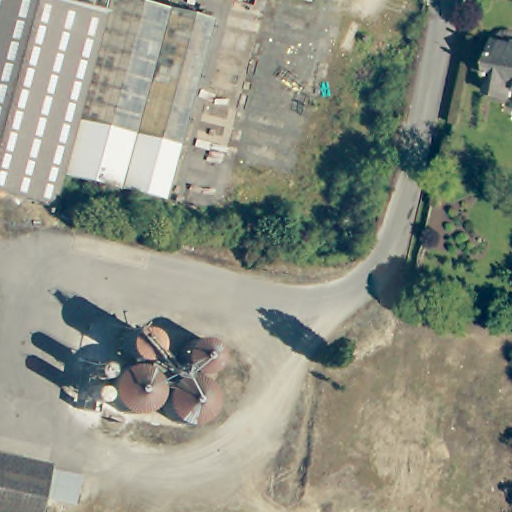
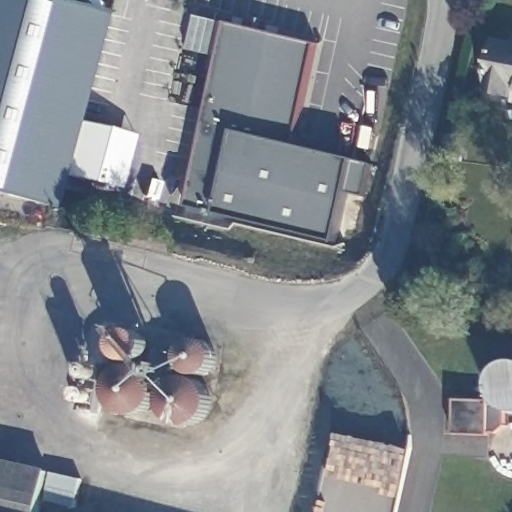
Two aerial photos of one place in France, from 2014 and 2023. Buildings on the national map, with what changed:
unchanged [(110,11),(71,174),(63,206),(0,191),(0,0),(63,0),(110,11)]
new [(225,21),(317,43),(293,145),(351,160),(369,163),(360,197),(344,193),(332,241),(211,213),(183,205),(225,21)]
unchanged [(512,95),(488,90),(498,39),(512,42),(512,95)]
demolished [(208,117),(226,44),(250,50),(232,123),(208,117)]
new [(124,187),(70,176),(71,174),(83,121),(137,135),(124,187)]
unchanged [(152,335),(152,341),(151,348),(147,353),(141,356),(134,357),(126,355),(121,351),(119,345),(118,338),(122,331),(127,327),(138,325),(148,328),(152,335)]
unchanged [(202,339),(207,340),(211,343),(214,347),(217,351),(217,356),(216,361),(214,366),(211,370),(207,373),(202,375),(197,375),(192,373),(187,370),(184,366),(182,361),(181,356),(182,351),(184,347),(188,343),(192,340),(197,339),(202,339)]
unchanged [(139,364),(144,365),(148,368),(152,371),(155,375),(158,380),(159,385),(160,390),(159,395),(158,400),(155,404),(152,408),(148,411),(143,413),(139,415),(133,415),(128,415),(124,413),(119,411),(115,407),(112,403),(110,399),(108,394),(108,389),(108,384),(110,379),(112,375),(115,371),(119,367),(124,365),(129,364),(134,363),(139,364)]
unchanged [(192,377),(197,378),(201,380),(205,383),(208,387),(211,392),(212,396),(213,401),(212,406),(210,411),(208,415),(205,420),(201,422),(196,425),(191,426),(186,426),(182,425),(177,423),(173,420),(169,417),(166,413),(164,408),(163,403),(163,398),(164,393),(166,389),(169,385),(173,381),(177,379),(182,377),(187,376),(192,377)]
unchanged [(49,463),(38,512),(0,512),(0,452),(49,463)]

